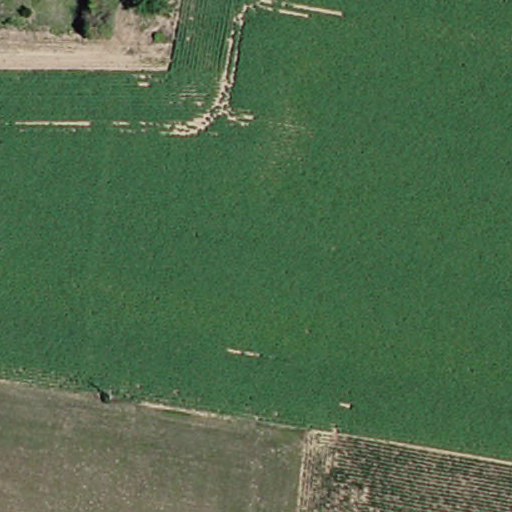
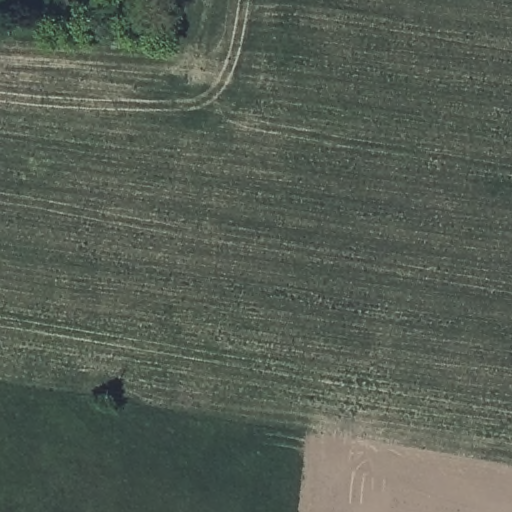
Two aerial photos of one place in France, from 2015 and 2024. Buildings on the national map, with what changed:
[]

